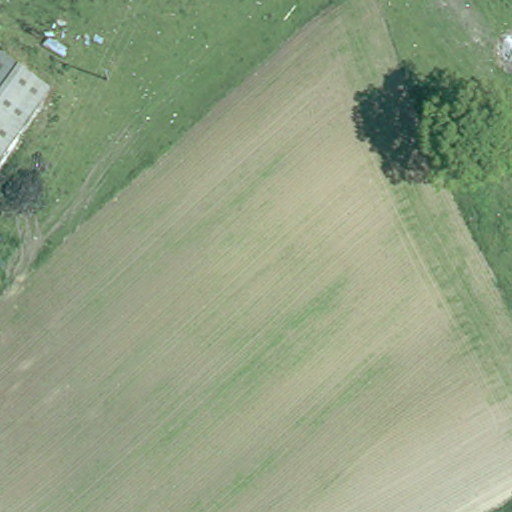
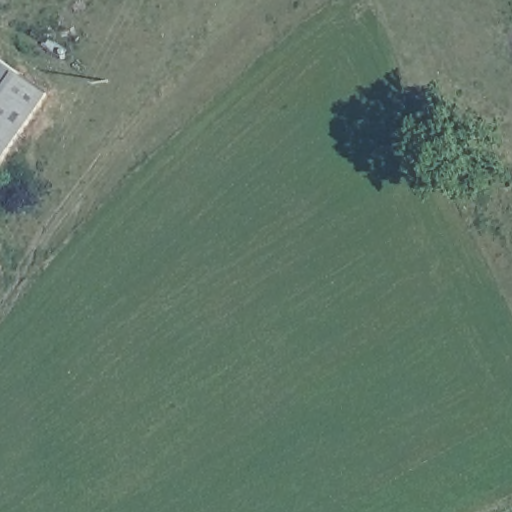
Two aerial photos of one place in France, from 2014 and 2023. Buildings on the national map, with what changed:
unchanged [(0,165),(0,54),(52,92),(0,165)]

